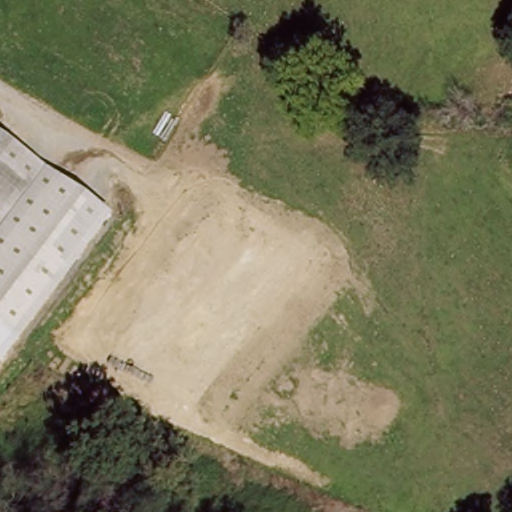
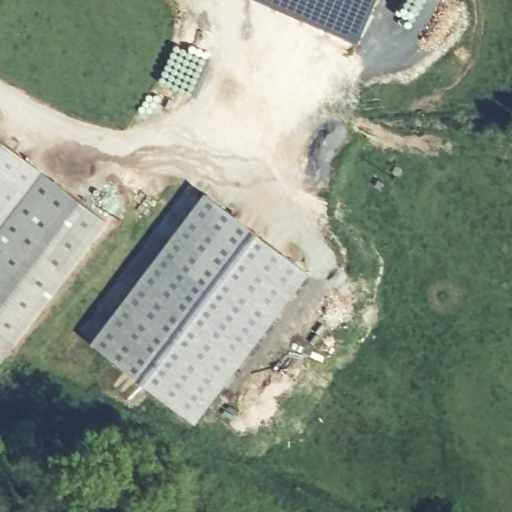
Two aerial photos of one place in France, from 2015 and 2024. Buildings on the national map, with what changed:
new [(366,39),(273,0),(382,0),(366,39)]
unchanged [(113,221),(18,343),(0,330),(0,237),(31,196),(0,171),(0,133),(113,221)]
unchanged [(31,196),(0,237),(0,171),(31,196)]
new [(93,343),(207,193),(311,273),(197,423),(93,343)]
unchanged [(0,366),(0,330),(18,343),(0,366)]

